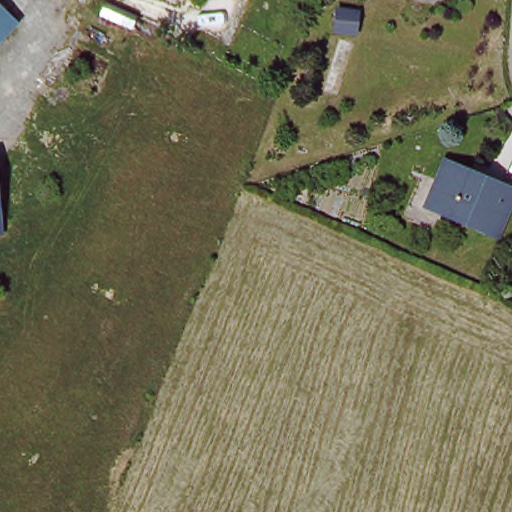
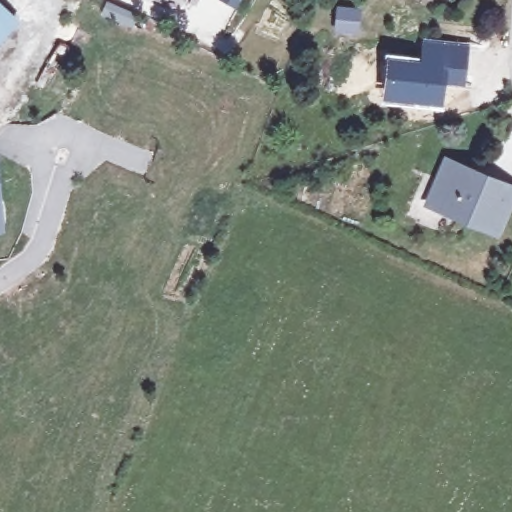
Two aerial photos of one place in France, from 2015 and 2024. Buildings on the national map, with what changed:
unchanged [(23,19),(0,44),(0,0),(3,0),(23,19)]
new [(335,3),(362,6),(359,35),(332,32),(335,3)]
new [(384,50),(418,54),(420,36),(470,42),(465,87),(445,84),(442,107),(380,100),(384,50)]
unchanged [(510,214),(502,233),(431,202),(449,158),(475,168),(473,173),(487,179),(488,174),(506,181),(512,184),(512,210),(510,214)]
unchanged [(0,232),(0,208),(1,232),(0,232)]

